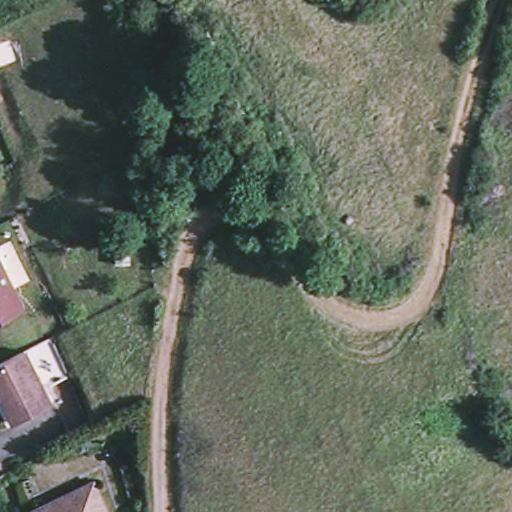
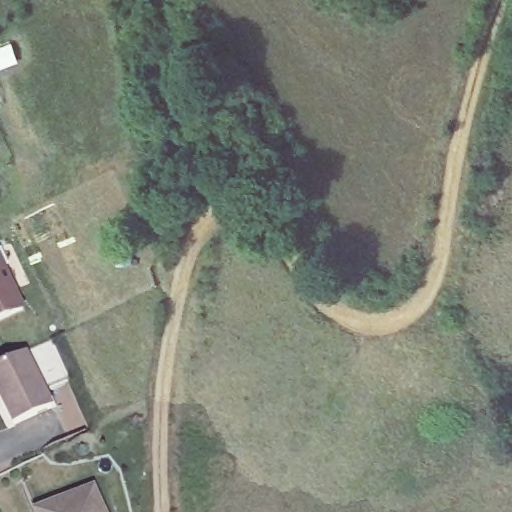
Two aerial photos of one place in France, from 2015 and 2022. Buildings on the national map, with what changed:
unchanged [(0,320),(0,271),(19,310),(0,320)]
unchanged [(50,403),(5,423),(0,411),(0,359),(23,348),(50,403)]
unchanged [(98,483),(111,512),(36,512),(36,511),(98,483)]

